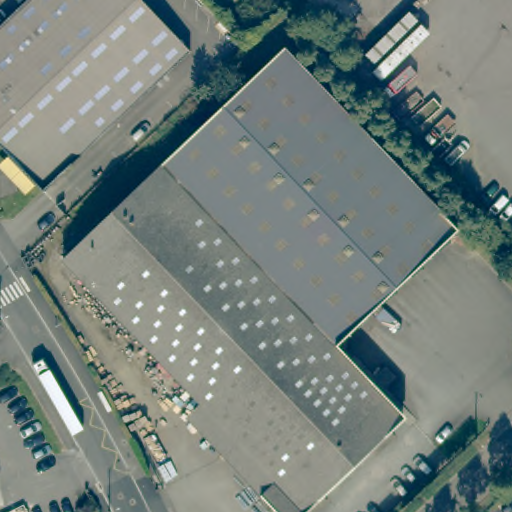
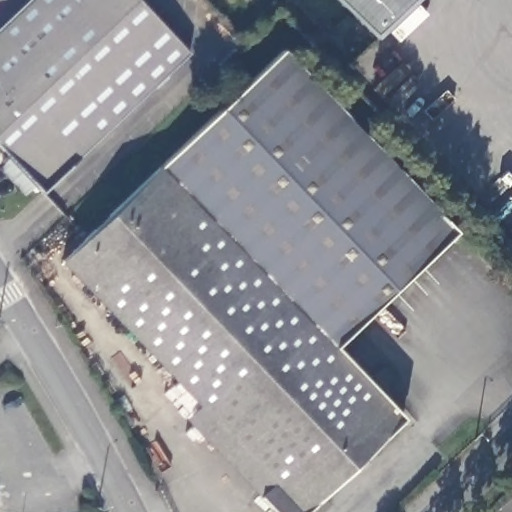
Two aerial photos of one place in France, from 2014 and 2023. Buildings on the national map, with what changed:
unchanged [(24,185),(0,129),(0,23),(25,0),(146,0),(192,48),(45,187),(37,180),(24,185)]
new [(337,0),(418,0),(377,39),(337,0)]
unchanged [(274,479),(199,400),(63,256),(159,163),(281,46),(456,229),(333,346),(401,417),(301,512),(277,512),(260,493),(274,479)]
unchanged [(186,412),(199,400),(274,479),(260,493),(186,412)]

